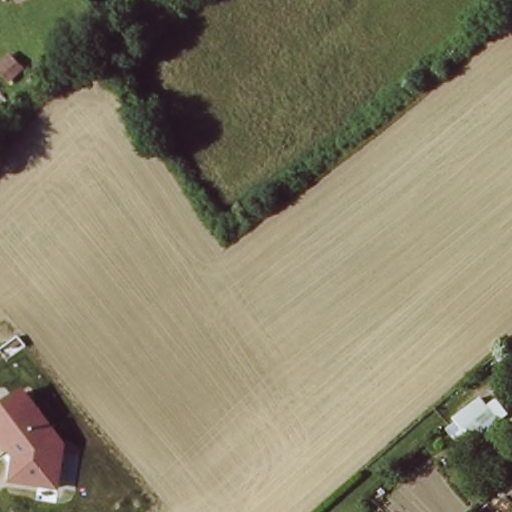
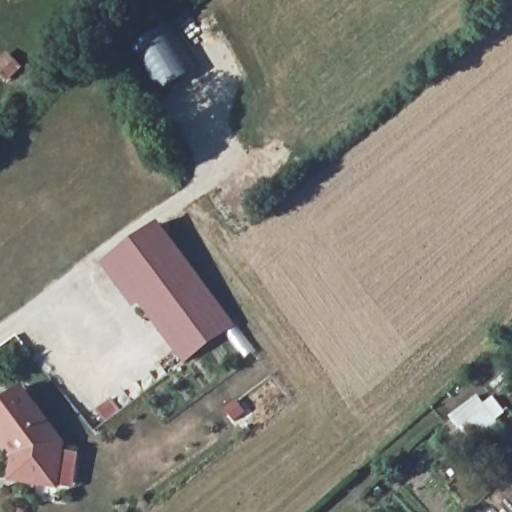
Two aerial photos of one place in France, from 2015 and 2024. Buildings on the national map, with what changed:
new [(160,221),(236,327),(182,364),(139,306),(135,309),(102,265),(160,221)]
unchanged [(29,393),(68,447),(61,489),(17,481),(21,458),(0,429),(0,413),(29,393)]
new [(445,428),(455,420),(452,416),(479,395),(486,404),(495,397),(507,412),(497,419),(502,425),(464,453),(445,428)]

